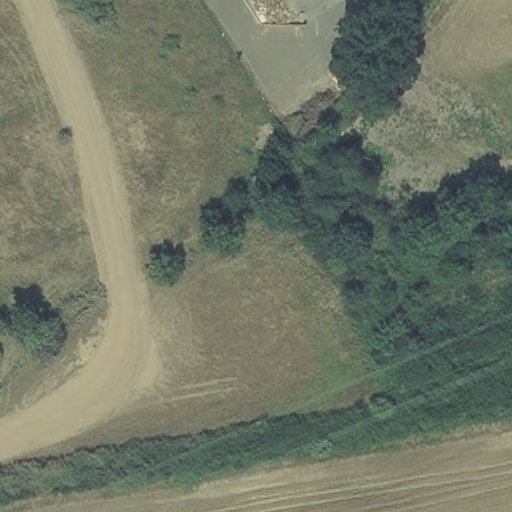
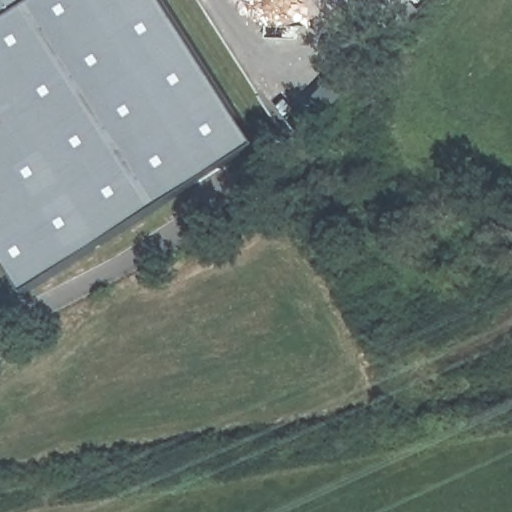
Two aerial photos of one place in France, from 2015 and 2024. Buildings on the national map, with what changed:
new [(38,292),(0,232),(0,0),(181,0),(269,145),(38,292)]

